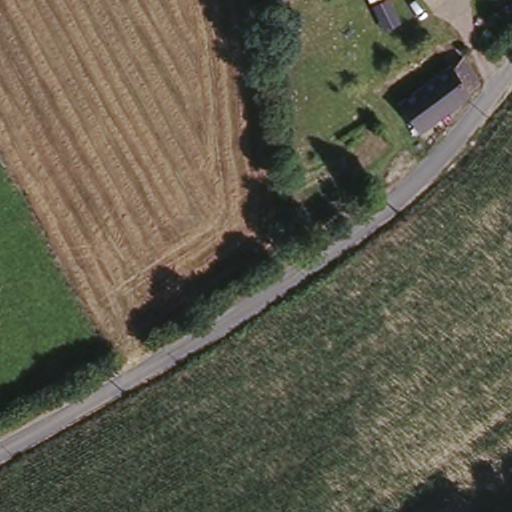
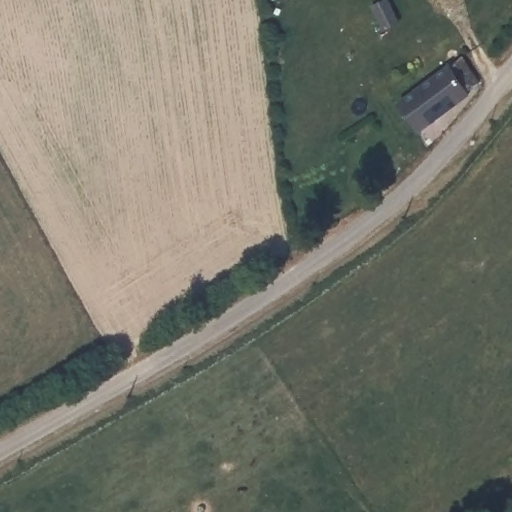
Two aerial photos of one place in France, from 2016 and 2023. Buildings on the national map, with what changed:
unchanged [(418,129),(397,99),(462,54),(480,80),(467,87),(470,92),(418,129)]

